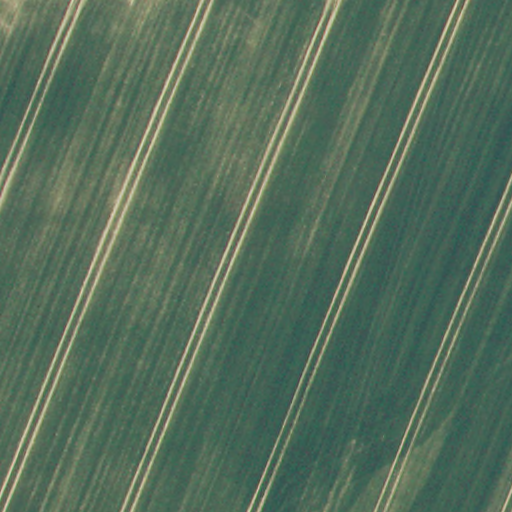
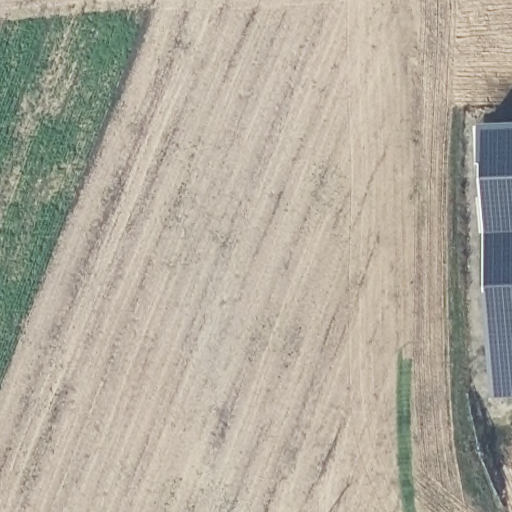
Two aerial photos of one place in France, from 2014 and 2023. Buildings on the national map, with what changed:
new [(512,393),(495,393),(482,120),(512,120),(512,393)]

